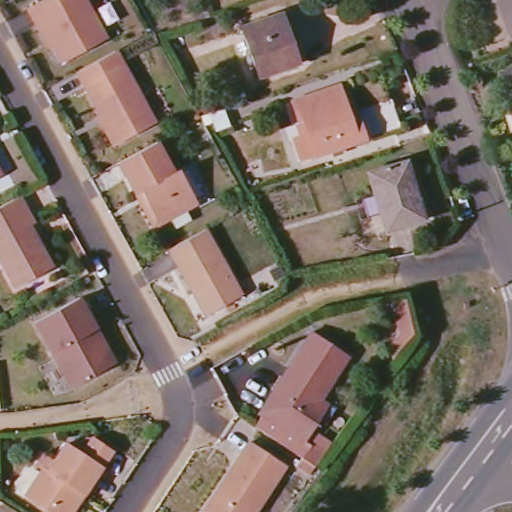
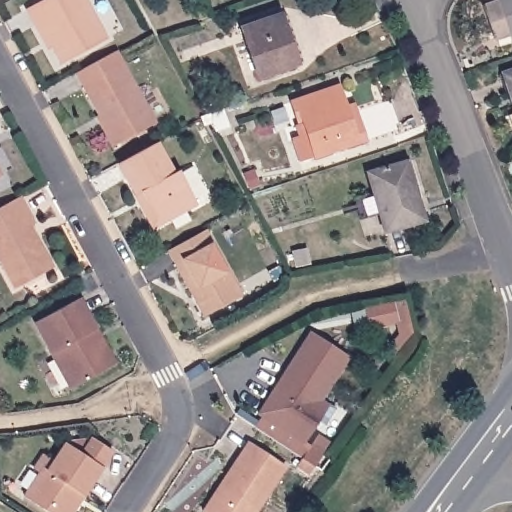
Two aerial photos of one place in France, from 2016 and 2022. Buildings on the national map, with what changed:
unchanged [(34,9),(51,0),(85,0),(109,44),(69,65),(64,67),(54,47),(34,9)]
unchanged [(488,0),(512,0),(512,32),(509,29),(495,34),(483,2),(488,0)]
unchanged [(242,30),(279,17),(296,64),(259,77),(242,30)]
unchanged [(78,75),(93,67),(116,54),(155,127),(120,146),(114,150),(98,121),(102,119),(78,75)]
unchanged [(503,74),(512,71),(512,99),(503,74)]
unchanged [(302,119),(298,121),(291,102),(336,86),(350,126),(357,124),(369,107),(390,100),(400,127),(315,157),(302,119)]
unchanged [(137,198),(120,166),(158,145),(175,177),(180,174),(200,208),(161,229),(156,232),(137,198)]
unchanged [(369,174),(402,164),(410,187),(414,187),(424,221),(385,232),(369,174)]
unchanged [(12,194),(0,200),(0,172),(12,194)]
unchanged [(34,231),(56,270),(17,292),(0,261),(0,210),(3,209),(21,199),(34,220),(39,228),(34,231)]
unchanged [(192,299),(167,253),(195,238),(206,232),(242,300),(210,318),(204,321),(192,299)]
unchanged [(110,368),(74,386),(40,320),(82,297),(101,329),(120,363),(110,368)]
unchanged [(405,303),(416,339),(394,346),(390,336),(401,333),(394,307),(405,303)]
unchanged [(302,458),(308,449),(261,418),(269,407),(267,405),(320,325),(355,349),(327,393),(334,399),(327,412),(311,436),(328,446),(321,458),(316,467),(302,458)]
unchanged [(27,497),(45,470),(52,472),(68,445),(85,455),(95,439),(115,452),(86,497),(76,512),(50,512),(27,497)]
unchanged [(252,448),(287,472),(261,512),(211,512),(252,448)]

